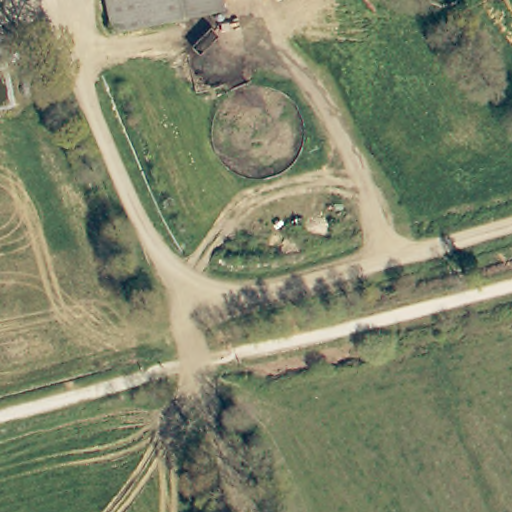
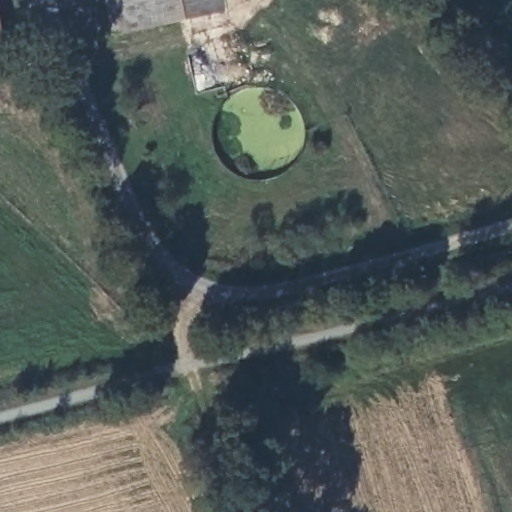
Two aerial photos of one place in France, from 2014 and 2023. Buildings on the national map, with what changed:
unchanged [(117,29),(111,0),(186,0),(189,16),(117,29)]
unchanged [(189,16),(186,0),(210,0),(212,12),(189,16)]
unchanged [(0,56),(0,20),(7,54),(0,56)]

